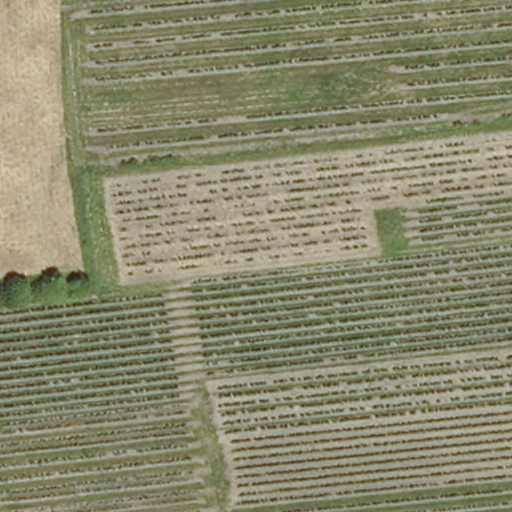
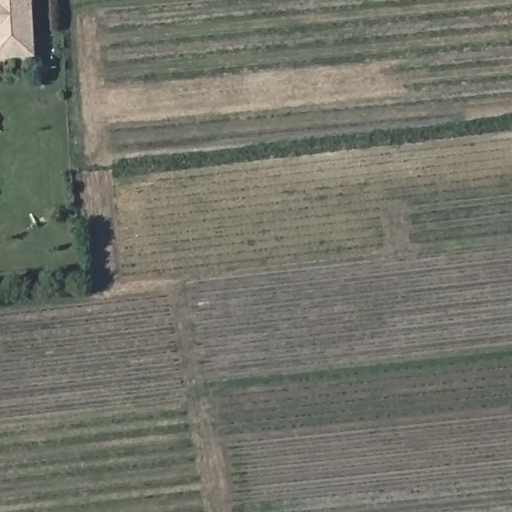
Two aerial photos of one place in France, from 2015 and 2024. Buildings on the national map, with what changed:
new [(36,56),(0,58),(0,0),(34,0),(36,56)]

